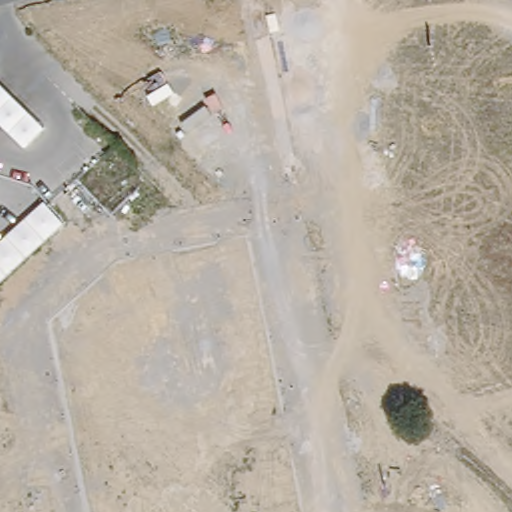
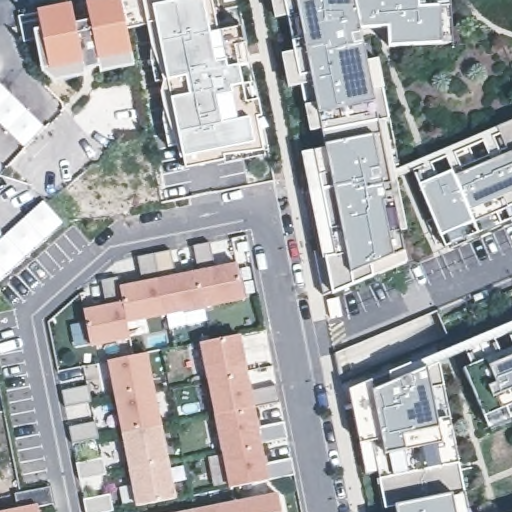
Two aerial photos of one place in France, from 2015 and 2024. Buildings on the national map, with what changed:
new [(37,39),(30,40),(25,15),(75,5),(79,23),(93,20),(90,3),(102,0),(123,0),(133,53),(136,66),(103,72),(103,68),(88,71),(89,75),(58,81),(44,70),(37,39)]
new [(219,31),(243,27),(246,45),(259,100),(262,117),(257,118),(264,152),(265,157),(226,164),(226,161),(185,169),(183,159),(181,160),(176,146),(169,148),(163,121),(165,111),(161,93),(163,82),(155,83),(150,62),(152,49),(147,25),(129,29),(123,0),(212,0),(219,31)]
new [(325,295),(316,252),(336,248),(316,150),(328,148),(324,129),(312,131),(308,106),(304,86),(289,15),(278,17),(274,0),(432,0),(433,7),(453,6),(454,32),(455,44),(433,45),(391,46),(390,27),(362,28),(368,61),(379,58),(389,111),(400,164),(397,165),(397,170),(509,122),(512,121),(512,217),(508,207),(497,212),(502,223),(482,231),(478,220),(469,224),(474,235),(452,244),(447,233),(443,235),(421,184),(415,169),(392,180),(393,183),(406,253),(408,263),(374,277),(334,294),(334,292),(325,295)]
new [(297,53),(304,86),(289,89),(282,55),(297,53)]
new [(24,152),(0,128),(0,86),(45,132),(24,152)]
new [(311,188),(304,153),(316,150),(336,248),(316,252),(303,189),(311,188)]
new [(44,205),(63,228),(0,282),(0,243),(44,205)]
new [(211,243),(216,269),(239,265),(245,299),(206,306),(199,272),(194,246),(211,243)]
unchanged [(172,250),(177,277),(199,272),(206,306),(167,314),(155,253),(172,250)]
new [(143,284),(138,257),(155,253),(167,314),(127,322),(121,288),(143,284)]
unchanged [(107,307),(102,281),(119,277),(121,288),(127,322),(131,338),(91,345),(85,312),(107,307)]
new [(466,368),(474,365),(468,350),(441,362),(423,365),(421,359),(442,354),(512,323),(512,336),(510,332),(496,338),(502,353),(512,349),(512,419),(491,428),(487,417),(466,368)]
unchanged [(239,335),(246,371),(210,379),(203,342),(239,335)]
unchanged [(146,353),(154,390),(117,397),(110,360),(146,353)]
new [(384,509),(378,479),(380,479),(379,472),(366,406),(379,473),(366,475),(353,409),(349,390),(421,359),(423,365),(441,362),(445,385),(461,463),(449,465),(455,494),(467,492),(471,512),(397,512),(396,506),(384,509)]
unchanged [(246,371),(250,390),(278,385),(281,402),(254,408),(217,415),(210,379),(246,371)]
new [(154,390),(161,426),(124,433),(117,397),(154,390)]
unchanged [(254,408),(257,427),(285,422),(288,438),(261,444),(224,451),(217,415),(254,408)]
unchanged [(161,426),(168,463),(132,470),(124,433),(161,426)]
unchanged [(261,444),(265,463),(292,458),(295,475),(232,488),(224,451),(261,444)]
unchanged [(168,463),(175,499),(139,506),(132,470),(168,463)]
unchanged [(282,512),(241,512),(240,502),(279,494),(282,512)]
unchanged [(241,512),(195,512),(195,511),(240,502),(241,512)]
unchanged [(39,512),(6,512),(38,506),(39,512)]
unchanged [(195,512),(189,512),(195,511),(195,512)]

